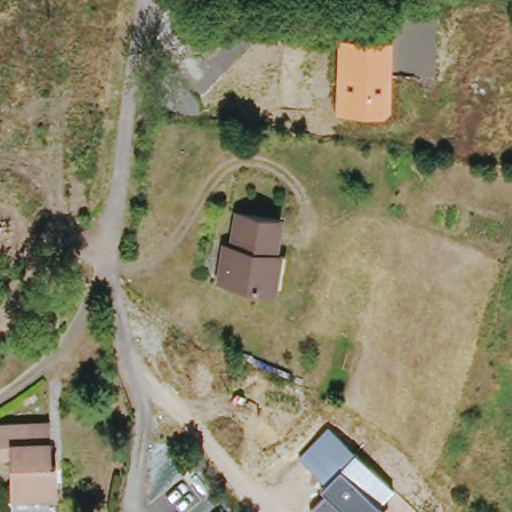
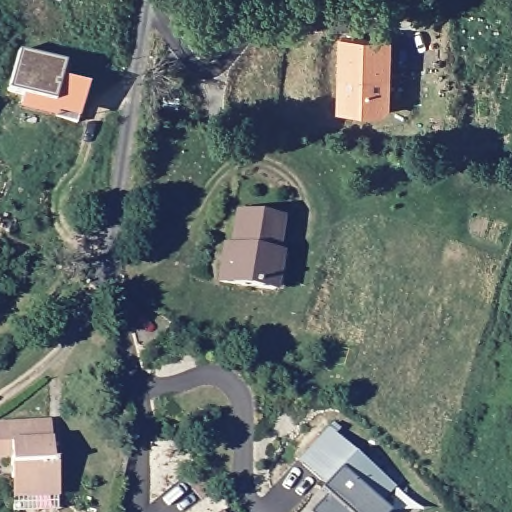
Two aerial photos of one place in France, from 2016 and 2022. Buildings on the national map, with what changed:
new [(36,3),(34,0),(40,0),(36,3)]
unchanged [(390,111),(385,117),(335,115),(338,39),(392,40),(390,111)]
new [(59,112),(57,117),(21,107),(25,94),(10,90),(20,52),(64,64),(72,65),(69,79),(87,84),(79,118),(59,112)]
unchanged [(223,279),(239,208),(285,218),(279,253),(285,256),(277,291),(223,279)]
unchanged [(17,474),(16,455),(0,455),(0,424),(54,419),(55,458),(62,459),(63,489),(23,492),(22,474),(17,474)]
unchanged [(320,492),(327,486),(300,460),(329,429),(394,490),(377,504),(386,512),(312,512),(325,496),(320,492)]

